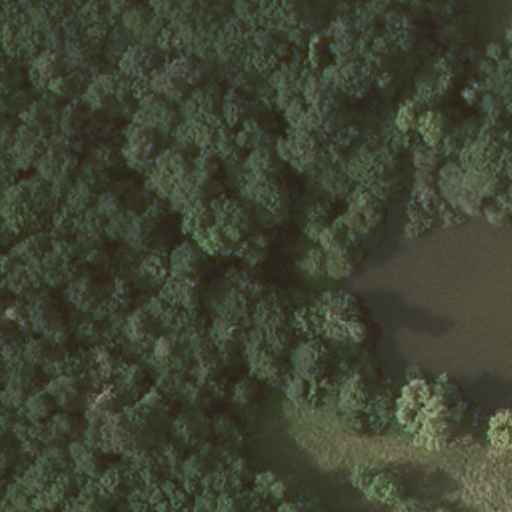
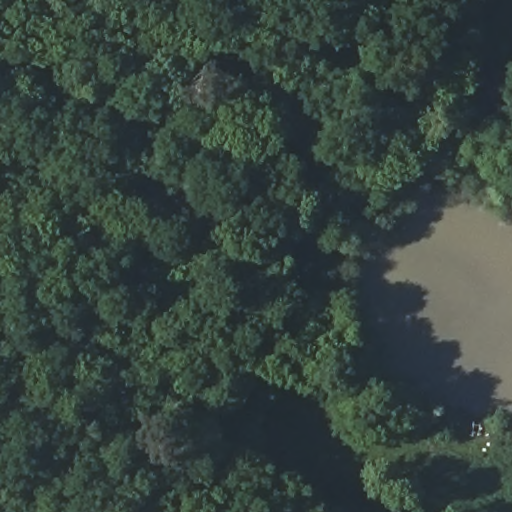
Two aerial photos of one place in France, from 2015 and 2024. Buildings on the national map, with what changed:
[]

